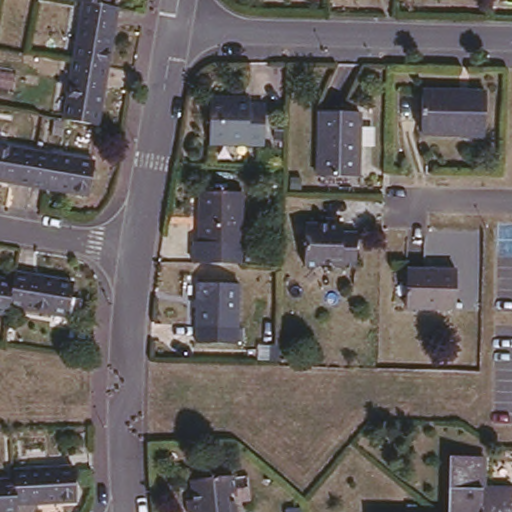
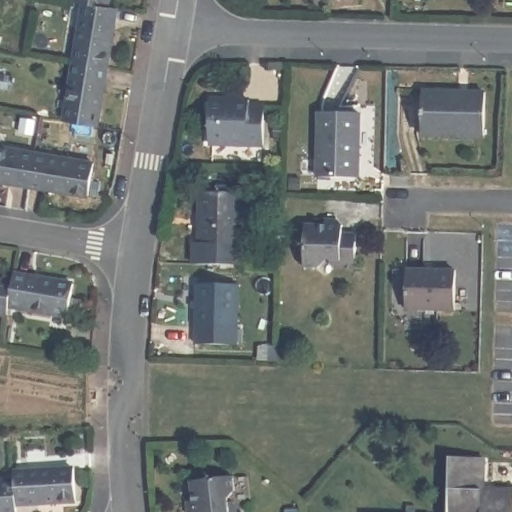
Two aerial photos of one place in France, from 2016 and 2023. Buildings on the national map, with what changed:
unchanged [(64,115),(86,0),(113,0),(112,2),(124,4),(105,123),(64,115)]
unchanged [(254,99),(253,105),(267,105),(266,143),(210,143),(214,97),(254,99)]
unchanged [(491,101),(490,140),(410,139),(413,101),(491,101)]
unchanged [(360,113),(357,176),(318,175),(321,112),(360,113)]
unchanged [(87,192),(0,178),(0,144),(93,160),(87,192)]
unchanged [(205,191),(249,190),(245,261),(204,260),(205,191)]
unchanged [(312,224),(312,214),(335,213),(334,222),(351,223),(348,262),(293,261),(295,224),(312,224)]
unchanged [(463,268),(460,309),(410,308),(409,267),(463,268)]
unchanged [(79,280),(72,310),(14,302),(19,281),(20,272),(79,280)]
unchanged [(0,278),(19,281),(14,302),(12,312),(0,311),(0,278)]
unchanged [(244,279),(243,329),(197,329),(200,280),(244,279)]
unchanged [(512,487),(512,512),(457,512),(459,455),(485,455),(485,485),(512,487)]
unchanged [(17,470),(75,466),(75,495),(20,499),(19,506),(0,508),(0,478),(16,477),(17,470)]
unchanged [(201,494),(200,480),(235,477),(238,512),(189,512),(188,497),(201,494)]

